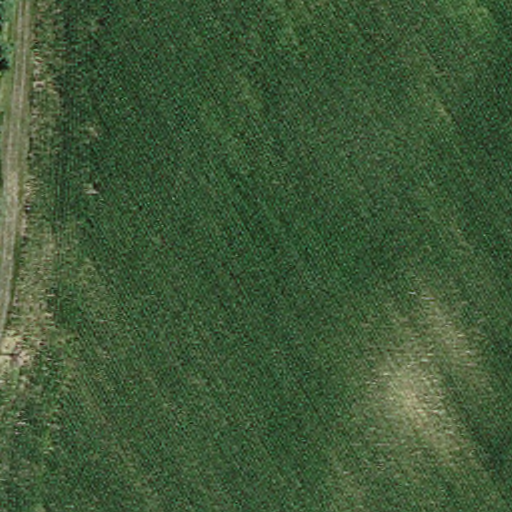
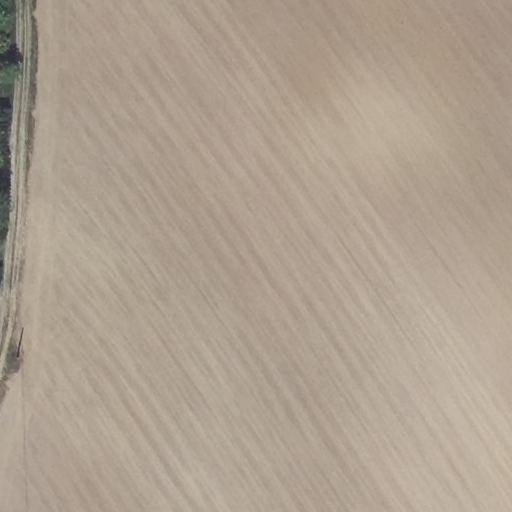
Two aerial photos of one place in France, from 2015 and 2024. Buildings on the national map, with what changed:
[]

